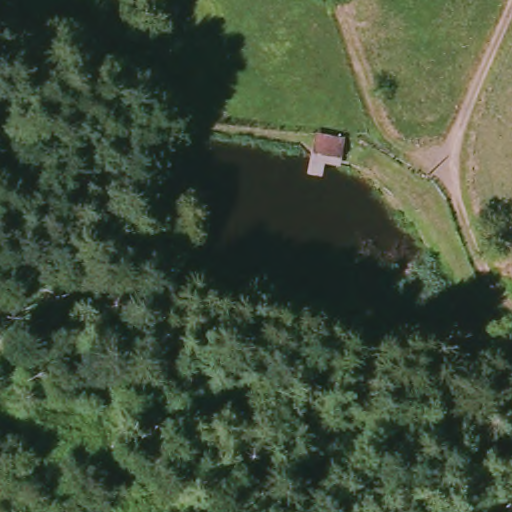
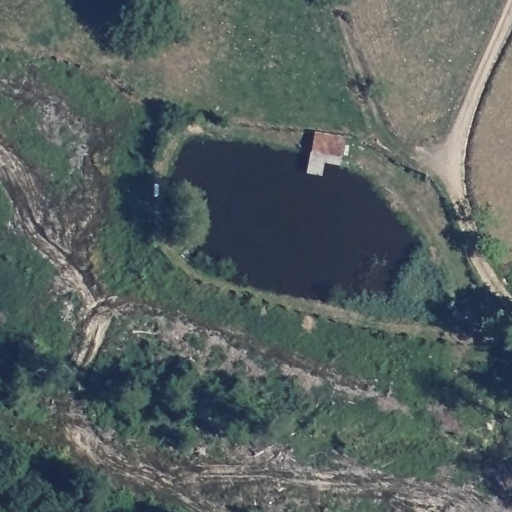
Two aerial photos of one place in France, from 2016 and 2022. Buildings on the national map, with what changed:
unchanged [(341,138),(337,165),(322,162),(318,177),(302,176),(305,159),(313,134),(341,138)]

